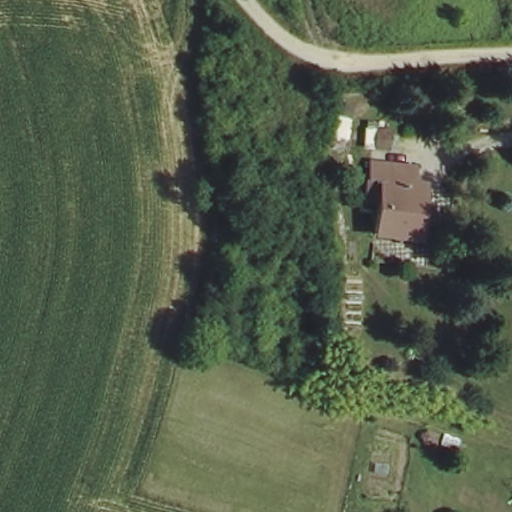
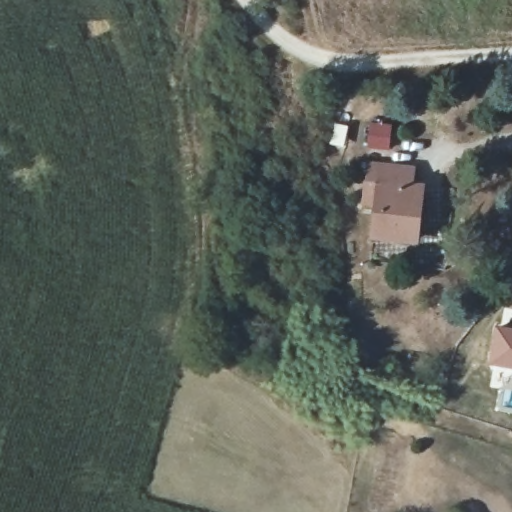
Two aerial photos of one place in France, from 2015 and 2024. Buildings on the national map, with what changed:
unchanged [(414,169),(412,186),(423,187),(417,240),(378,235),(381,203),(367,201),(371,164),(414,169)]
new [(512,325),(512,368),(487,364),(494,322),(512,325)]

